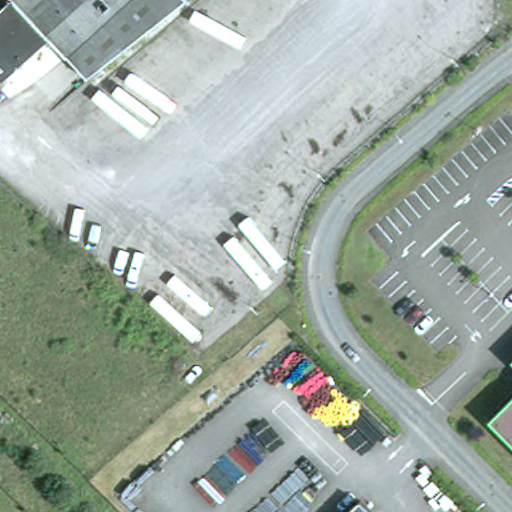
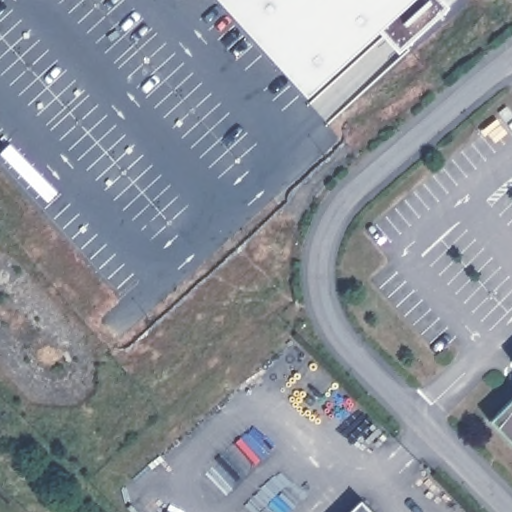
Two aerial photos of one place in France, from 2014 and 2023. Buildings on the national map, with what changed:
demolished [(63,53),(46,35),(0,78),(0,3),(3,0),(178,0),(83,74),(64,52),(63,53)]
new [(399,50),(379,30),(307,96),(219,0),(442,0),(448,7),(399,50)]
unchanged [(489,425),(512,402),(512,449),(489,425)]
unchanged [(362,512),(360,512),(361,511),(362,512)]

